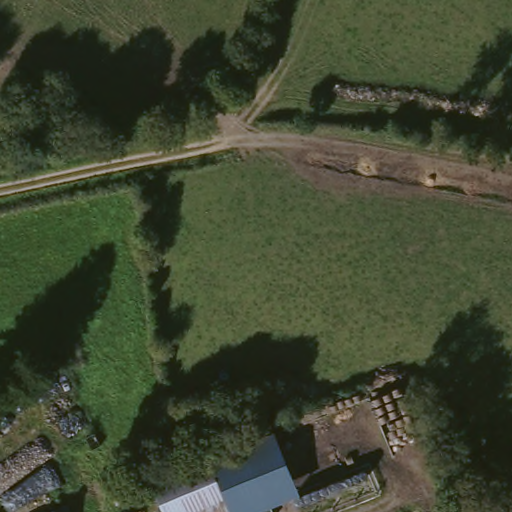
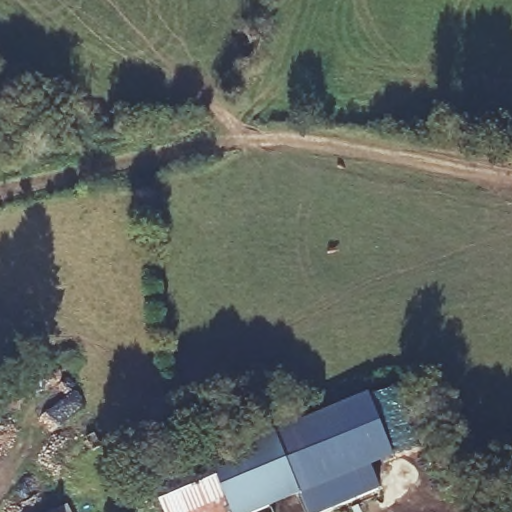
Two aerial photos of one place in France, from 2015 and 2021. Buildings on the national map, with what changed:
new [(277,438),(368,397),(393,462),(307,497),(277,438)]
unchanged [(277,438),(307,497),(276,512),(226,512),(207,466),(277,438)]
unchanged [(226,512),(156,512),(150,491),(207,466),(226,512)]

